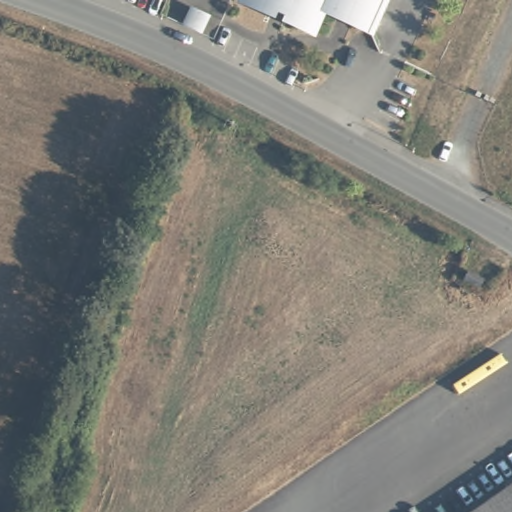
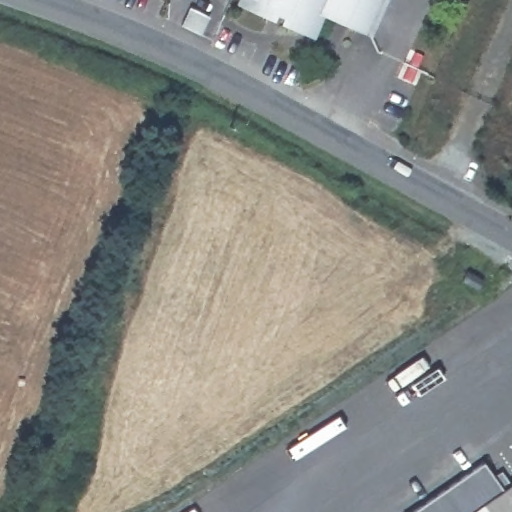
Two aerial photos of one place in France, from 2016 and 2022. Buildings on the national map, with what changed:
unchanged [(316,6),(308,24),(285,14),(286,9),(277,6),(271,9),(253,0),(378,0),(367,27),(316,6)]
unchanged [(160,19),(168,1),(187,8),(179,27),(160,19)]
new [(483,460),(503,487),(468,512),(409,512),(483,460)]
unchanged [(512,481),(512,512),(468,512),(512,481)]

